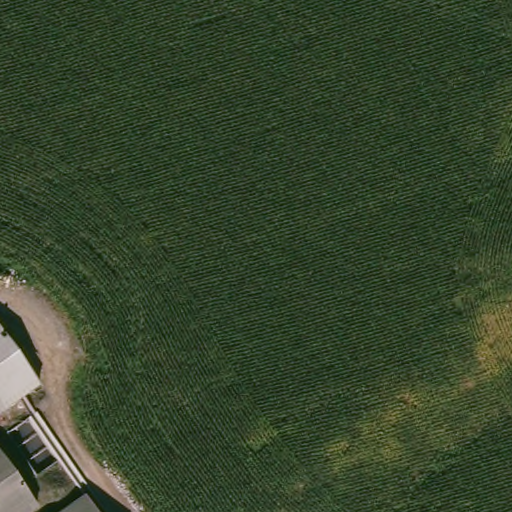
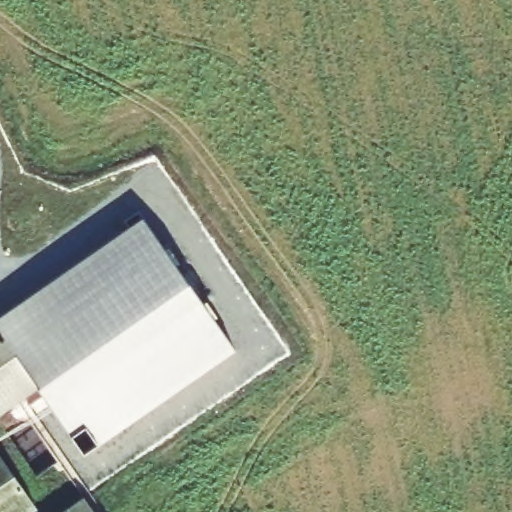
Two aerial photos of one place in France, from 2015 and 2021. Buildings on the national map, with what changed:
new [(142,220),(235,351),(98,445),(83,455),(41,389),(0,332),(0,316),(142,220)]
unchanged [(41,389),(6,414),(0,406),(0,332),(41,389)]
unchanged [(6,414),(0,418),(0,406),(6,414)]
unchanged [(30,512),(0,512),(0,442),(42,504),(30,512)]
unchanged [(65,512),(85,499),(93,512),(65,512)]

